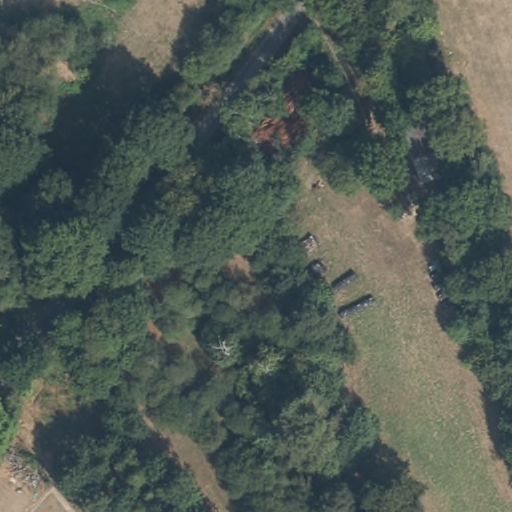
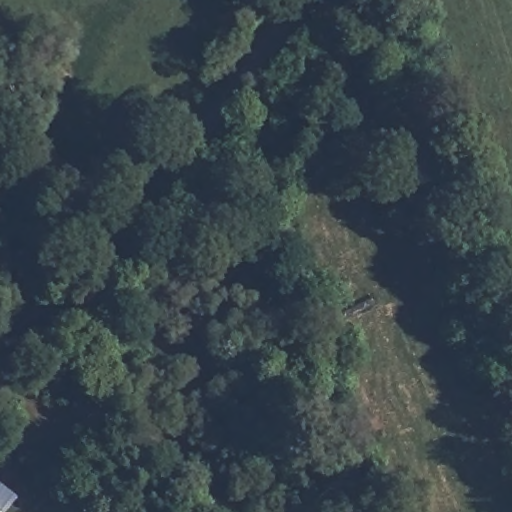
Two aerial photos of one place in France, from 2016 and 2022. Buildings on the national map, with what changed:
unchanged [(411,111),(429,182),(408,187),(390,118),(411,111)]
new [(1,512),(0,511),(0,485),(16,497),(5,512),(1,512)]

